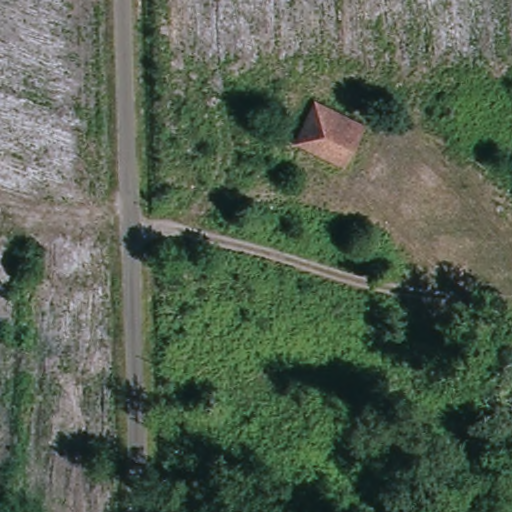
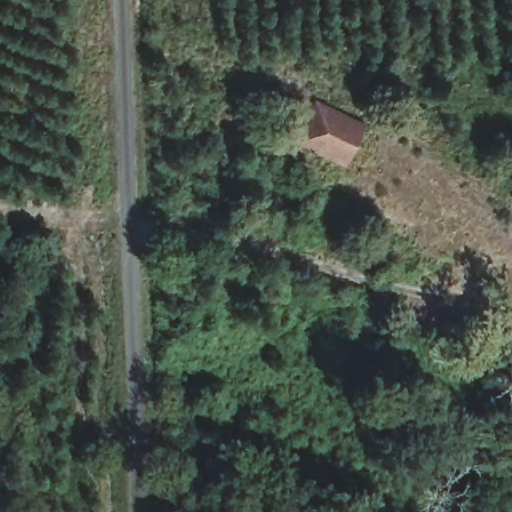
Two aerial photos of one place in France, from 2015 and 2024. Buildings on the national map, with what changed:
unchanged [(360,131),(350,159),(312,139),(326,114),(360,131)]

